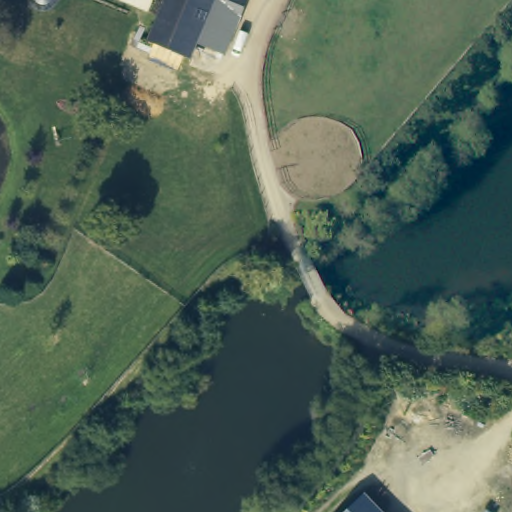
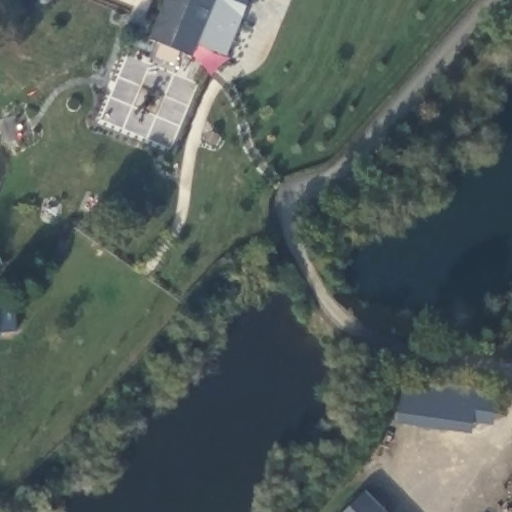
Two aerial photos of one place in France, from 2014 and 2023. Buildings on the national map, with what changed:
unchanged [(201,47),(196,58),(150,43),(168,0),(249,0),(226,57),(201,47)]
unchanged [(41,9),(62,15),(57,33),(36,27),(41,9)]
new [(494,427),(474,424),(472,437),(396,426),(402,384),(497,397),(494,427)]
unchanged [(379,512),(340,512),(359,493),(379,512)]

